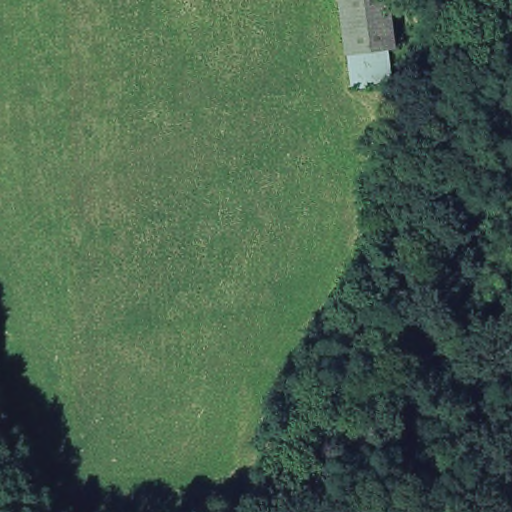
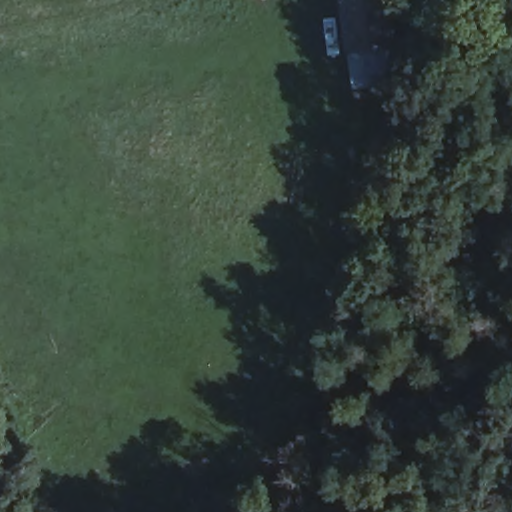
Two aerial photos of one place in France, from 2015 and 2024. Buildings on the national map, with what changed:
unchanged [(346,52),(341,0),(390,0),(396,47),(383,49),(346,52)]
unchanged [(346,52),(383,49),(386,81),(345,85),(341,53),(346,52)]

